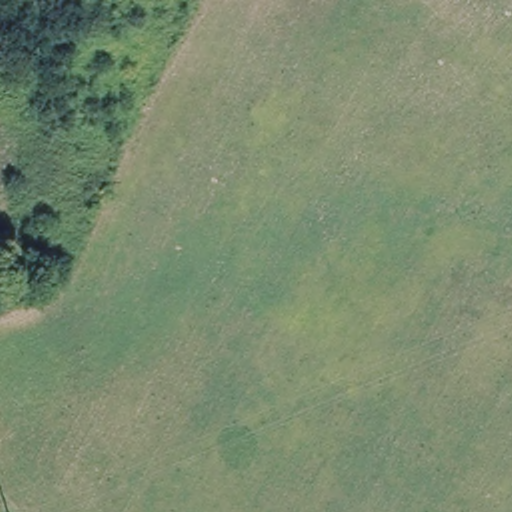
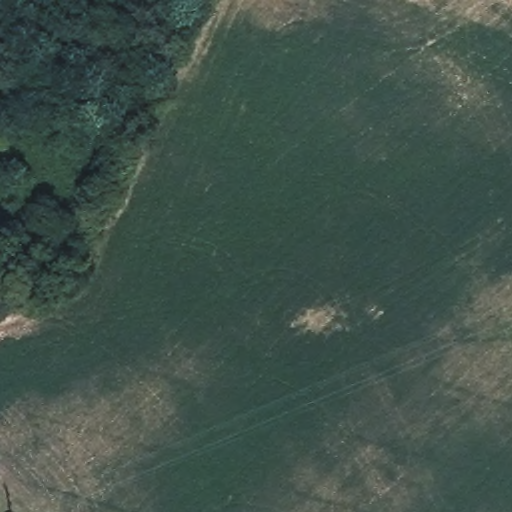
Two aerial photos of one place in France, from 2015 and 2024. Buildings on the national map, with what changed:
unchanged [(0,230),(0,228),(1,229),(0,230)]

